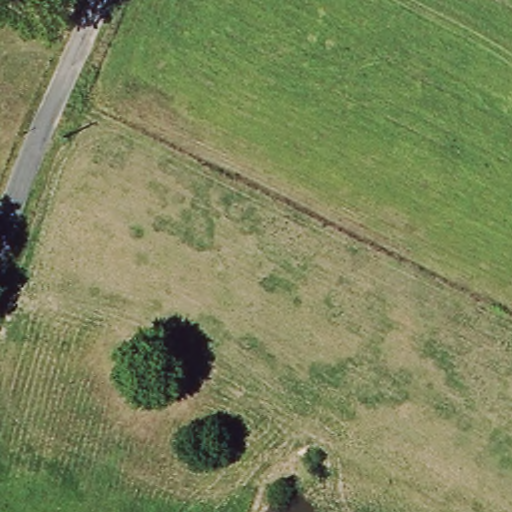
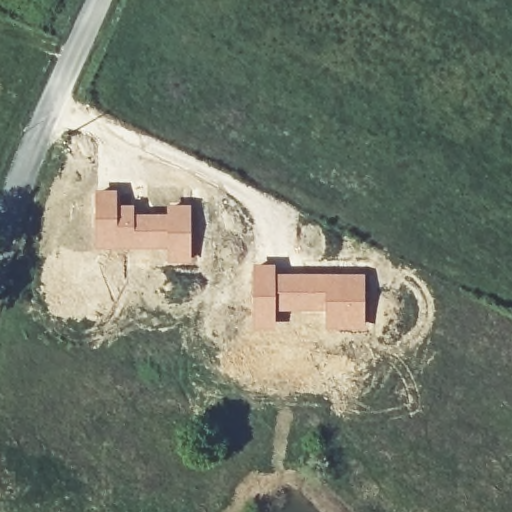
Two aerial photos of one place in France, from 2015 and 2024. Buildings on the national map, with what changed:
new [(94,191),(116,190),(117,205),(134,205),(134,214),(166,213),(166,203),(191,204),(191,263),(164,263),(164,251),(94,251),(94,191)]
new [(251,264),(275,264),(276,273),(275,312),(276,330),(251,330),(251,264)]
new [(276,273),(365,274),(365,330),(324,330),(323,313),(275,312),(276,273)]

